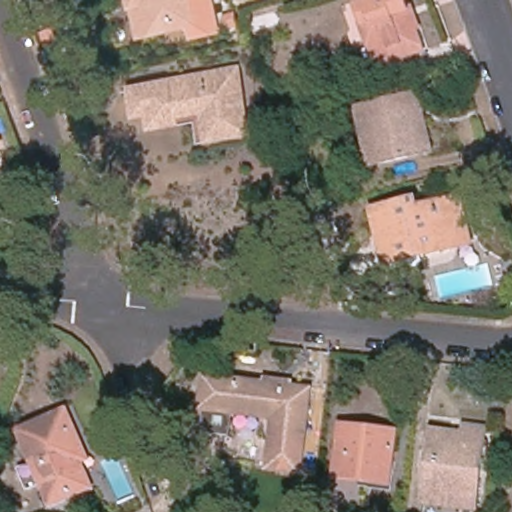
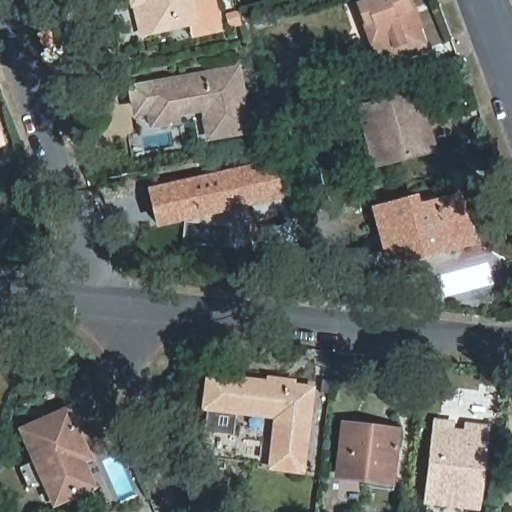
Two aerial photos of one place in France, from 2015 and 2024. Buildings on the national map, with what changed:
unchanged [(190,32),(188,20),(137,32),(129,0),(207,0),(213,27),(190,32)]
unchanged [(385,55),(383,50),(376,52),(364,17),(358,0),(409,0),(409,2),(416,20),(422,37),(424,43),(385,55)]
unchanged [(249,130),(213,135),(208,106),(176,111),(178,119),(156,122),(155,112),(154,107),(141,110),(137,88),(240,71),(249,130)]
unchanged [(359,110),(419,95),(424,114),(433,153),(425,155),(385,163),(373,165),(363,127),(359,110)]
unchanged [(9,141),(0,144),(0,114),(9,141)]
new [(156,227),(146,188),(274,161),(284,199),(156,227)]
unchanged [(465,242),(387,261),(374,207),(410,199),(408,196),(413,195),(415,206),(438,201),(455,197),(465,242)]
new [(264,230),(291,224),(295,243),(269,249),(264,230)]
unchanged [(279,415),(217,407),(205,405),(208,378),(220,380),(266,385),(266,376),(290,379),(288,388),(309,390),(307,405),(314,406),(312,417),(305,416),(299,468),(273,465),(279,415)]
unchanged [(78,465),(87,482),(54,496),(22,426),(64,408),(80,444),(88,460),(78,465)]
unchanged [(388,477),(336,470),(341,429),(343,420),(362,422),(395,426),(388,477)]
unchanged [(484,423),(474,504),(423,497),(431,435),(433,424),(464,428),(465,421),(484,423)]

